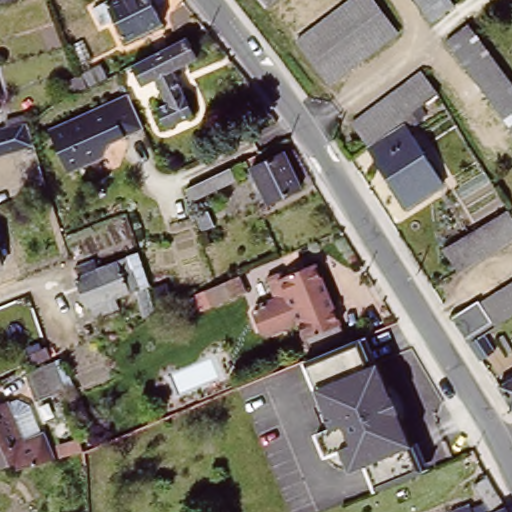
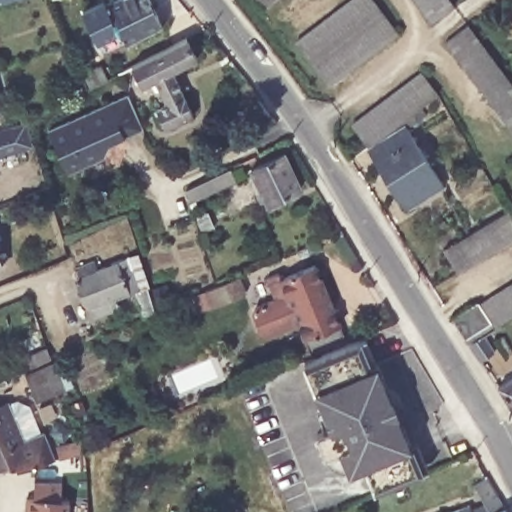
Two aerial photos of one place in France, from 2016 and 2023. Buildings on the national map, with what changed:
unchanged [(163,29),(125,47),(106,7),(120,0),(149,0),(163,29)]
unchanged [(265,11),(256,0),(278,0),(265,11)]
unchanged [(397,34),(329,88),(297,46),(354,0),(370,0),(397,34)]
unchanged [(454,9),(432,25),(414,0),(448,0),(454,9)]
unchanged [(512,117),(504,122),(447,44),(469,28),(512,86),(512,117)]
unchanged [(195,62),(171,75),(193,119),(166,133),(156,114),(166,109),(153,84),(140,90),(131,70),(184,41),(195,62)]
unchanged [(100,65),(107,77),(88,87),(83,73),(100,65)]
unchanged [(351,129),(422,77),(437,97),(438,99),(366,151),(351,129)]
unchanged [(107,142),(103,157),(65,171),(47,126),(128,95),(142,128),(107,142)]
unchanged [(28,128),(29,131),(48,194),(16,205),(12,191),(29,186),(17,149),(0,154),(0,135),(28,128)]
unchanged [(384,180),(368,154),(405,130),(442,187),(412,207),(404,212),(384,180)]
unchanged [(301,192),(268,210),(250,178),(284,160),(301,192)]
unchanged [(236,181),(190,203),(186,190),(231,167),(236,181)]
unchanged [(512,238),(457,271),(444,248),(508,209),(512,217),(512,238)]
unchanged [(148,317),(140,292),(118,299),(122,310),(98,318),(94,307),(91,308),(83,278),(83,277),(81,267),(98,261),(101,268),(134,257),(145,289),(151,287),(159,313),(148,317)]
unchanged [(3,273),(0,274),(0,264),(3,273)]
unchanged [(255,321),(250,323),(244,307),(268,298),(259,276),(269,271),(273,278),(309,264),(321,294),(255,321)]
unchanged [(248,294),(216,307),(209,289),(241,275),(248,294)]
unchanged [(512,286),(512,321),(496,331),(492,326),(464,342),(461,337),(451,322),(478,305),(479,307),(512,286)]
unchanged [(340,337),(304,351),(291,318),(260,331),(255,321),(321,294),(340,337)]
unchanged [(374,363),(421,472),(371,493),(361,467),(345,473),(336,452),(319,461),(309,438),(324,429),(311,391),(299,366),(361,339),(374,363)]
unchanged [(483,339),(494,356),(480,366),(468,348),(483,339)]
unchanged [(44,359),(26,367),(23,358),(41,349),(45,348),(46,354),(44,358),(44,359)]
unchanged [(59,387),(31,400),(20,374),(48,362),(59,387)]
unchanged [(507,384),(512,381),(512,415),(512,416),(500,395),(497,390),(494,387),(505,381),(507,384)]
unchanged [(8,409),(24,448),(22,449),(28,467),(0,473),(0,412),(8,409)]
unchanged [(37,456),(56,450),(58,455),(63,454),(64,460),(39,467),(37,456)]
new [(31,497),(33,481),(59,482),(58,499),(67,500),(66,512),(23,512),(24,497),(31,497)]
unchanged [(480,512),(483,511),(474,494),(487,487),(502,512),(480,512)]

